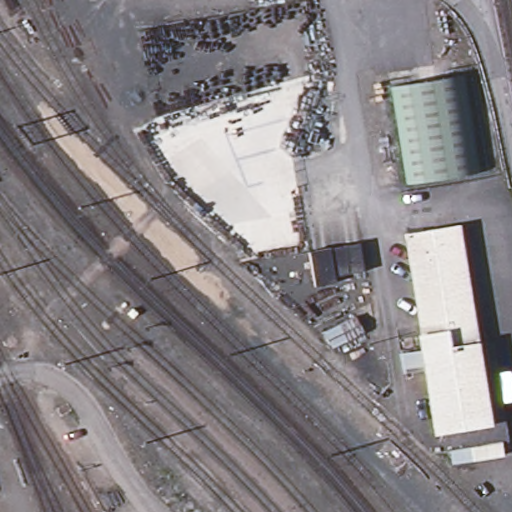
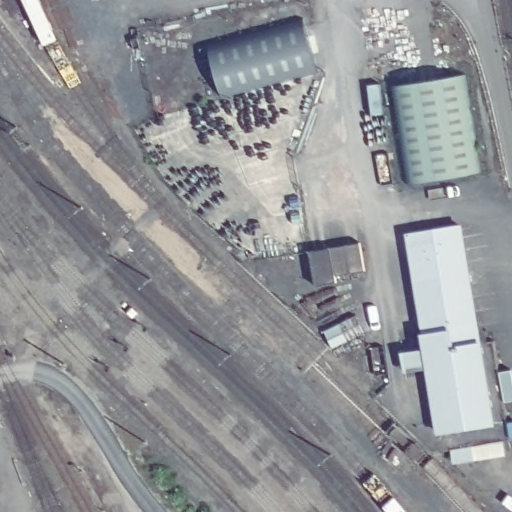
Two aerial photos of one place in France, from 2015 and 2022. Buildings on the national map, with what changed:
new [(223,100),(209,49),(304,24),(318,75),(223,100)]
unchanged [(466,76),(480,174),(408,184),(393,87),(466,76)]
unchanged [(493,429),(437,438),(403,236),(459,225),(493,429)]
unchanged [(364,280),(311,288),(306,251),(357,243),(364,280)]

